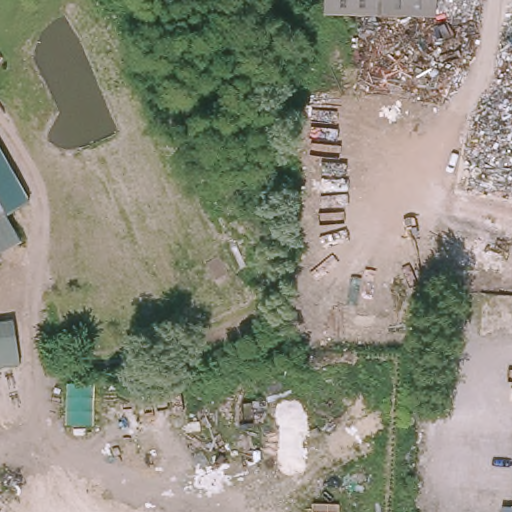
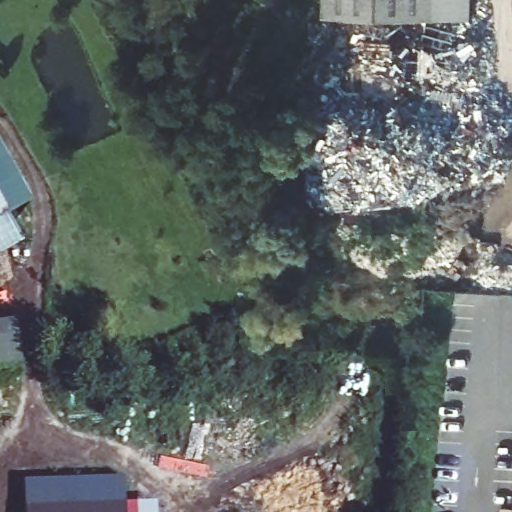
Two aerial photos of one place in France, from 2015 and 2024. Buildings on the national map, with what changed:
unchanged [(336,13),(336,0),(476,0),(476,16),(336,13)]
unchanged [(7,219),(22,243),(0,255),(0,146),(33,202),(7,219)]
unchanged [(22,361),(0,364),(0,323),(17,321),(22,361)]
new [(123,500),(137,500),(137,504),(155,504),(155,512),(23,512),(22,481),(123,479),(123,500)]
unchanged [(501,512),(502,501),(512,501),(512,512),(501,512)]

